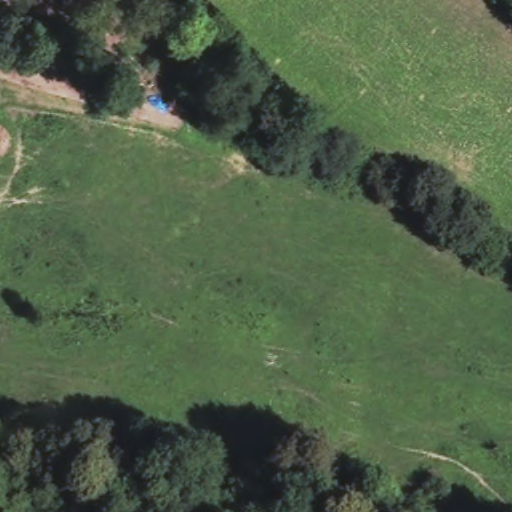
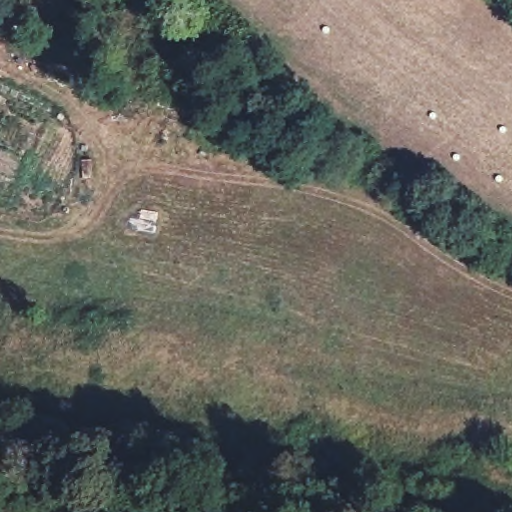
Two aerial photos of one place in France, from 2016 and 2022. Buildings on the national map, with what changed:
[]

